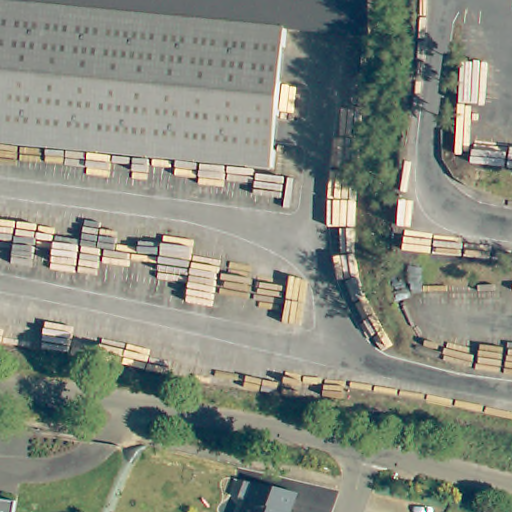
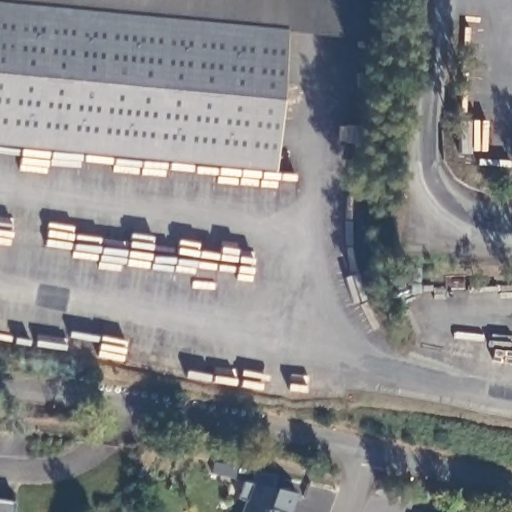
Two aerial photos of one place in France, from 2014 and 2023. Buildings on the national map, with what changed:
unchanged [(0,134),(0,0),(68,0),(295,22),(281,161),(0,134)]
unchanged [(377,30),(295,22),(68,0),(376,0),(377,30)]
unchanged [(243,512),(247,501),(239,498),(245,481),(297,493),(290,512),(243,512)]
unchanged [(15,512),(0,512),(0,509),(15,512)]

